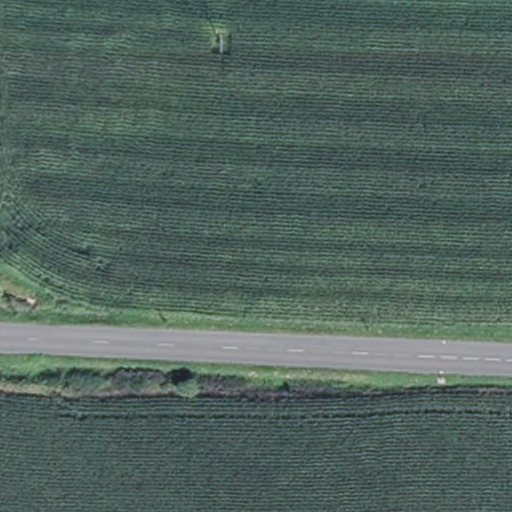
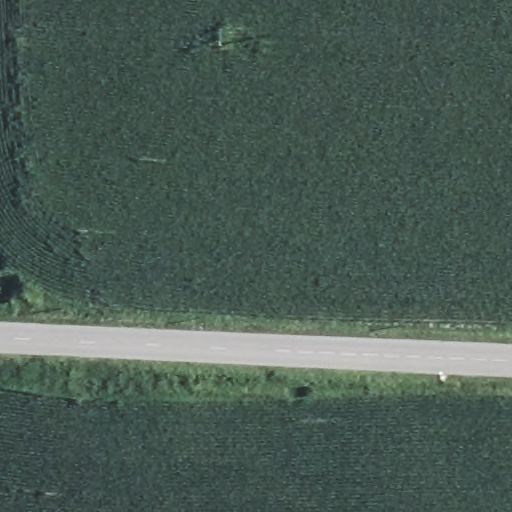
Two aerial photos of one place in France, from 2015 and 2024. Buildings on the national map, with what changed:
[]

